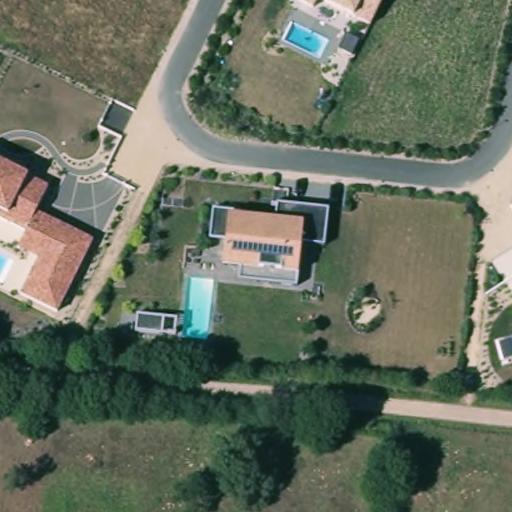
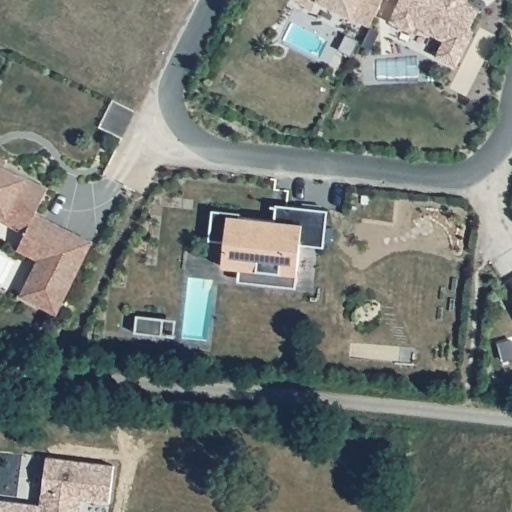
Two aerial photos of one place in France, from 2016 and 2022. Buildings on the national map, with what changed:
unchanged [(311,8),(295,0),(315,0),(311,8)]
unchanged [(371,27),(353,18),(316,0),(384,0),(371,27)]
new [(465,1),(478,7),(467,28),(472,30),(455,64),(435,55),(442,39),(415,25),(411,31),(387,20),(397,0),(466,0),(465,1)]
unchanged [(19,295),(36,258),(16,249),(25,232),(0,220),(0,164),(26,176),(48,186),(36,212),(92,241),(57,312),(19,295)]
unchanged [(239,267),(223,265),(225,241),(208,240),(211,208),(243,211),(242,217),(273,220),(275,205),(328,210),(325,246),(300,245),(295,286),(237,280),(239,267)]
new [(171,334),(159,333),(132,330),(135,313),(161,316),(174,317),(171,334)]
new [(40,505),(46,457),(114,465),(109,502),(81,499),(79,512),(0,512),(0,500),(40,505)]

